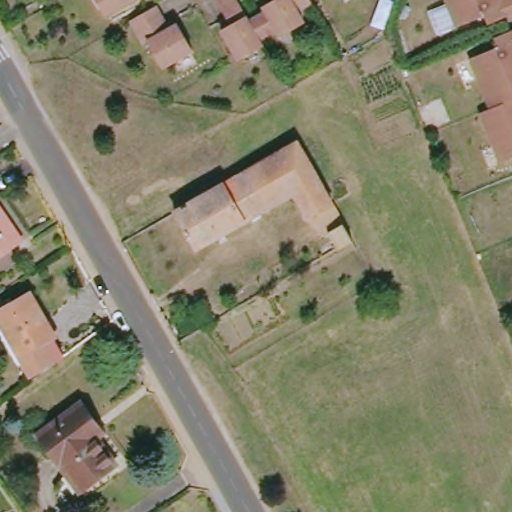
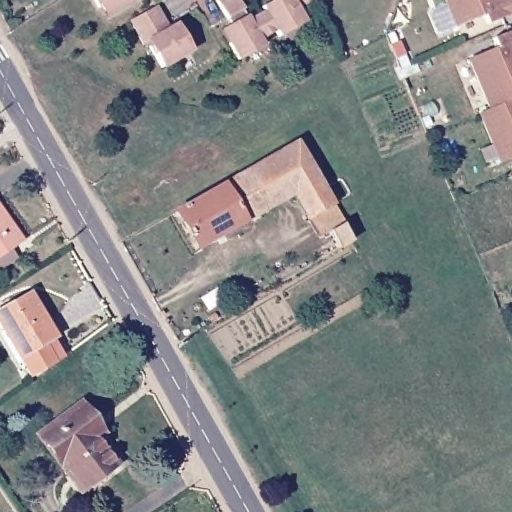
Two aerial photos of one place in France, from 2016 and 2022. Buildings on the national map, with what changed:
unchanged [(99,21),(86,0),(125,0),(127,5),(99,21)]
unchanged [(298,27),(272,41),(270,35),(255,41),(258,50),(233,63),(216,34),(224,30),(208,0),(231,0),(243,22),(264,12),(261,6),(276,0),(305,0),(309,7),(293,16),(298,27)]
unchanged [(451,0),(442,5),(440,0),(451,0)]
unchanged [(478,18),(451,28),(442,5),(451,0),(512,0),(512,12),(480,25),(478,18)]
unchanged [(162,34),(173,30),(184,55),(155,71),(141,48),(136,50),(124,29),(151,13),(162,34)]
unchanged [(490,53),(485,39),(512,27),(512,72),(477,86),(467,61),(490,53)]
unchanged [(512,159),(495,166),(477,116),(486,111),(477,86),(512,72),(512,159)]
unchanged [(347,237),(322,251),(316,242),(311,245),(286,202),(182,252),(163,216),(284,143),(347,237)]
unchanged [(512,189),(512,216),(504,193),(512,189)]
unchanged [(16,247),(0,257),(0,224),(16,247)]
unchanged [(512,244),(512,263),(506,246),(512,244)]
unchanged [(0,341),(0,307),(27,294),(51,340),(61,361),(23,382),(0,341)]
unchanged [(109,467),(79,491),(67,478),(60,483),(31,441),(74,408),(88,427),(82,431),(109,467)]

